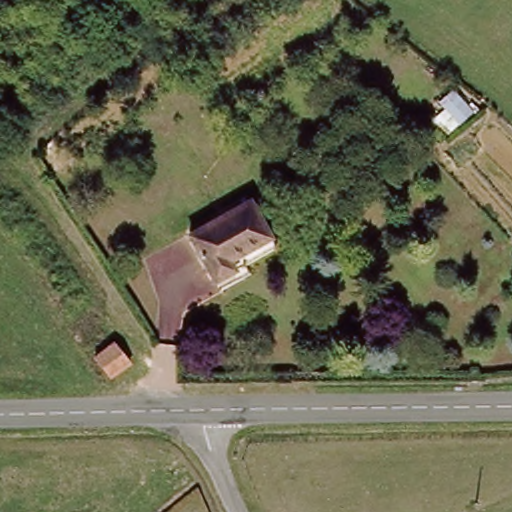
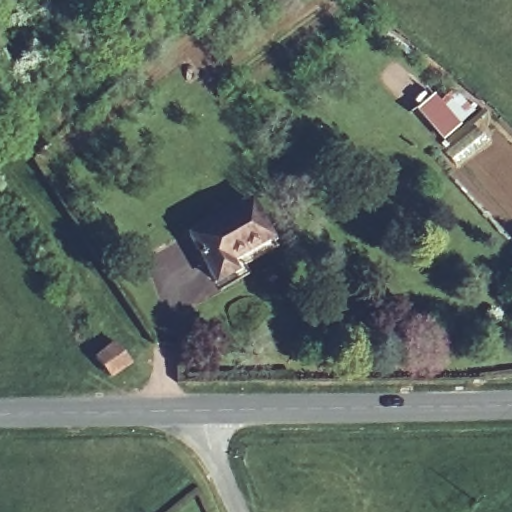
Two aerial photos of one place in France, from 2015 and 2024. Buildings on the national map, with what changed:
new [(434,95),(439,101),(454,88),(477,111),(460,125),(444,140),(417,109),(434,95)]
unchanged [(213,275),(191,230),(255,198),(279,242),(247,260),(250,269),(218,284),(213,275)]

